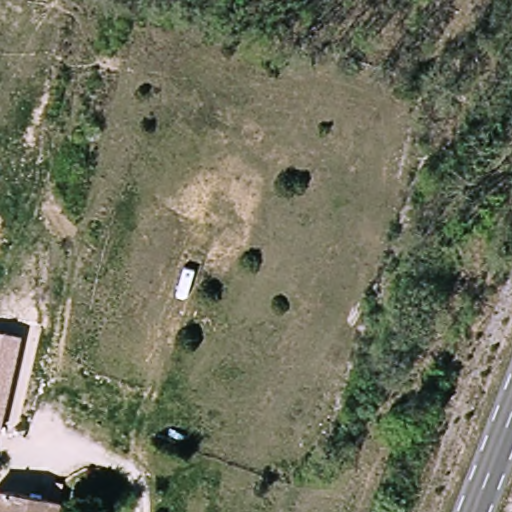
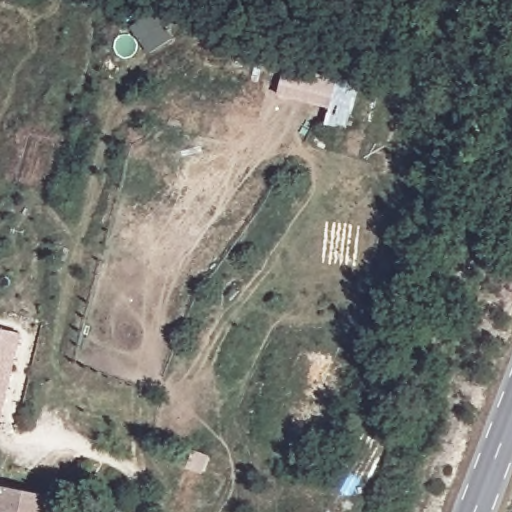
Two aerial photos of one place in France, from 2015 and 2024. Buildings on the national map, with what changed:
new [(329,111),(277,99),(285,66),(339,78),(329,111)]
unchanged [(23,333),(12,380),(8,389),(0,415),(0,327),(23,333)]
unchanged [(59,500),(55,512),(0,512),(0,482),(59,500)]

